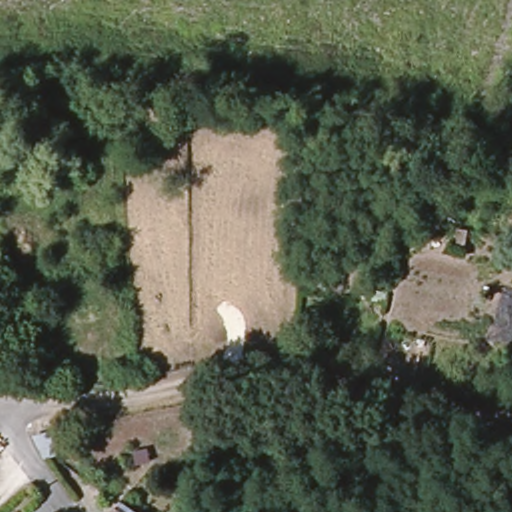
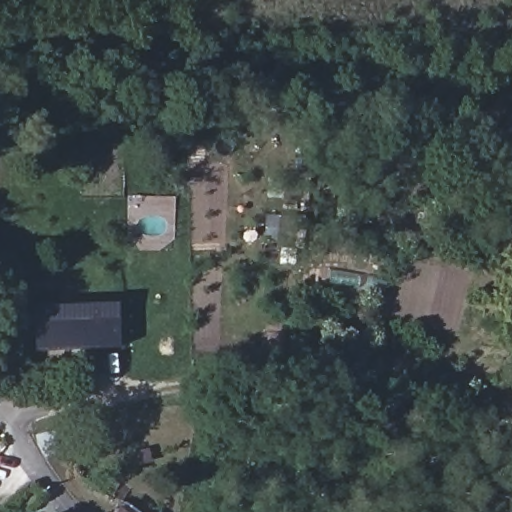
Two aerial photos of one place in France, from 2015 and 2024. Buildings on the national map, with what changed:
new [(120,304),(122,342),(35,345),(35,307),(120,304)]
unchanged [(36,432),(58,431),(79,427),(83,450),(46,458),(36,432)]
unchanged [(14,494),(11,491),(0,480),(0,463),(1,462),(20,481),(25,485),(14,494)]
unchanged [(120,505),(129,512),(115,512),(120,505)]
unchanged [(140,511),(142,512),(139,512),(140,511)]

